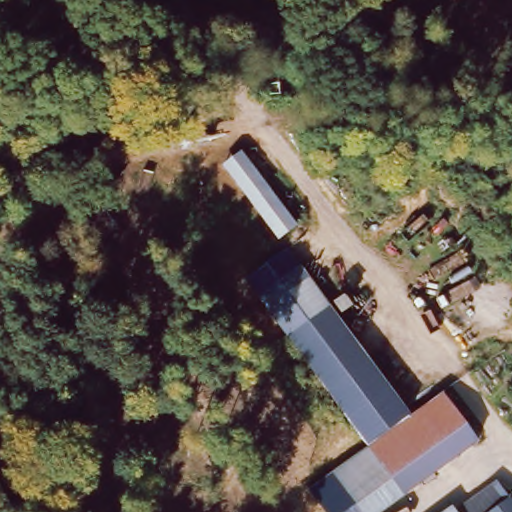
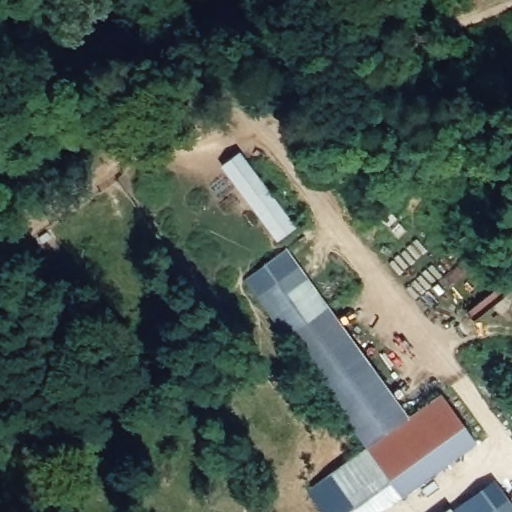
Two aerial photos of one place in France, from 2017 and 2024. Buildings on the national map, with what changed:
unchanged [(220,166),(242,153),(297,229),(275,242),(220,166)]
unchanged [(405,416),(443,391),(479,442),(380,512),(357,512),(329,473),(364,445),(285,335),(325,305),(405,416)]
unchanged [(490,484),(501,499),(510,493),(512,496),(512,512),(459,512),(456,507),(490,484)]
unchanged [(441,512),(449,506),(453,512),(441,512)]

